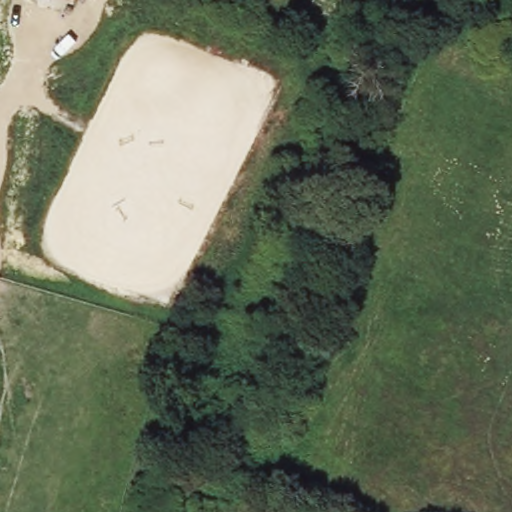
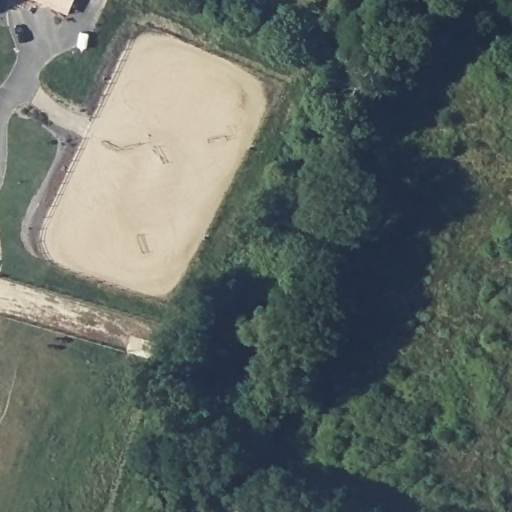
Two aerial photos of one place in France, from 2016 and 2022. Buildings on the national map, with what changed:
unchanged [(74,0),(76,0),(76,1),(74,0)]

